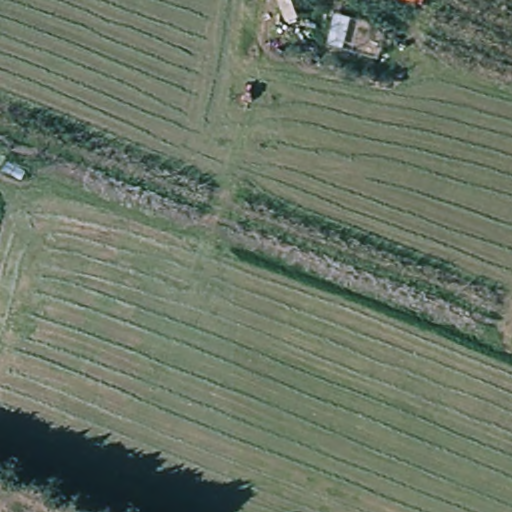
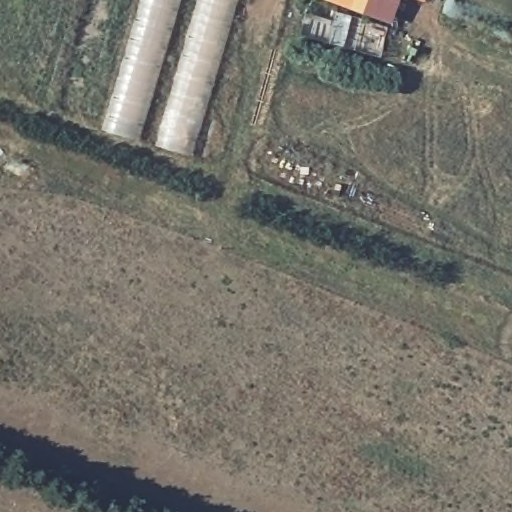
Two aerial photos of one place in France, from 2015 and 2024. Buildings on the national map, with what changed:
new [(136,139),(101,126),(138,0),(179,0),(136,139)]
new [(191,153),(155,142),(196,0),(237,0),(191,153)]
new [(329,0),(398,0),(388,22),(329,0)]
new [(422,2),(416,0),(422,0),(422,2)]
new [(336,12),(352,16),(344,46),(328,42),(336,12)]

